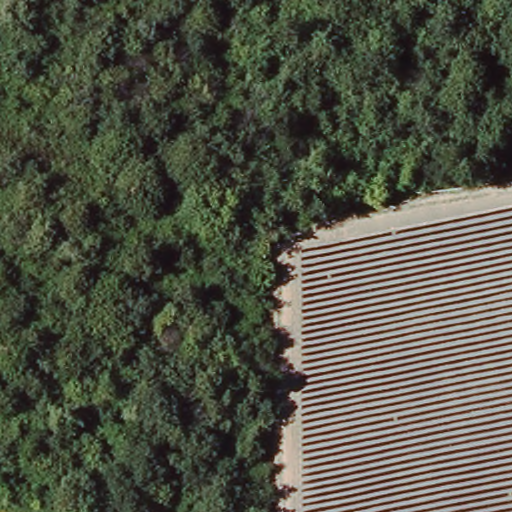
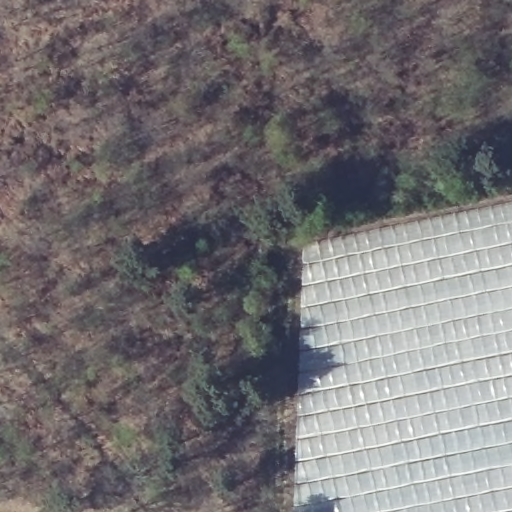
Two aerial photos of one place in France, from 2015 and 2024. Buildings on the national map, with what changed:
demolished [(287,454),(291,272),(306,244),(512,198),(512,512),(287,512),(287,454)]
new [(300,367),(302,291),(301,247),(352,235),(492,207),(512,203),(512,512),(294,512),(300,367)]

